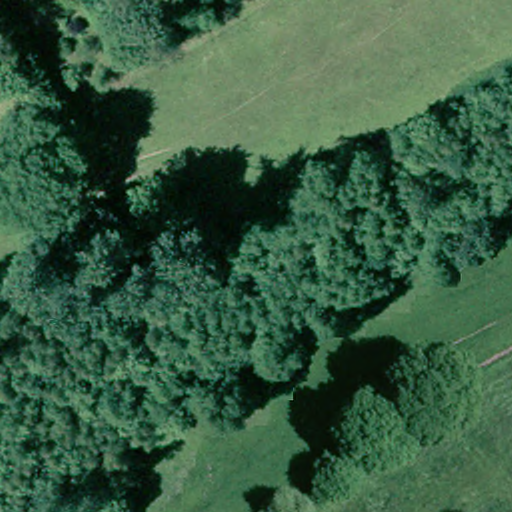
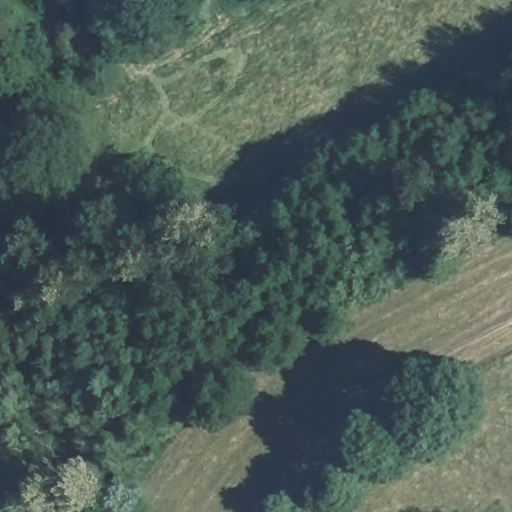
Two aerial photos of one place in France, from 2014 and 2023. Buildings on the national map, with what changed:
unchanged [(3,144),(13,166),(0,173),(0,146),(3,144)]

